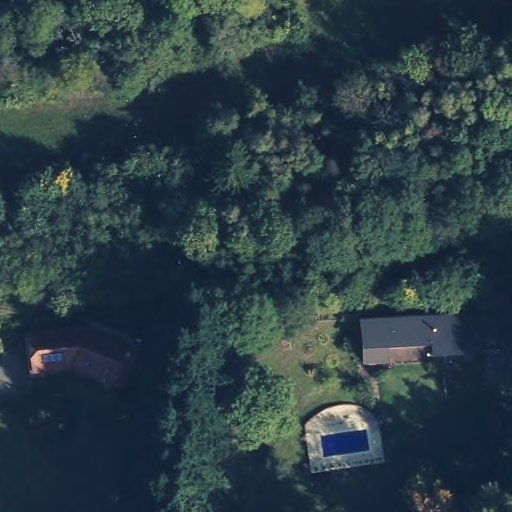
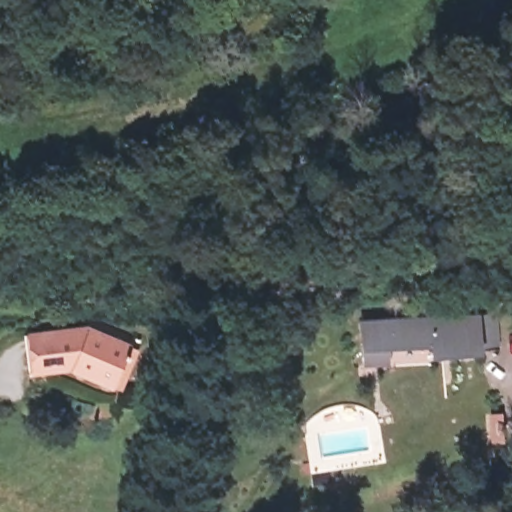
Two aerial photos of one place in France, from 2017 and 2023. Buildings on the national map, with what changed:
unchanged [(494,310),(499,349),(430,343),(390,346),(390,364),(365,365),(362,317),(494,310)]
unchanged [(92,325),(150,348),(131,397),(71,373),(35,377),(29,332),(92,325)]

